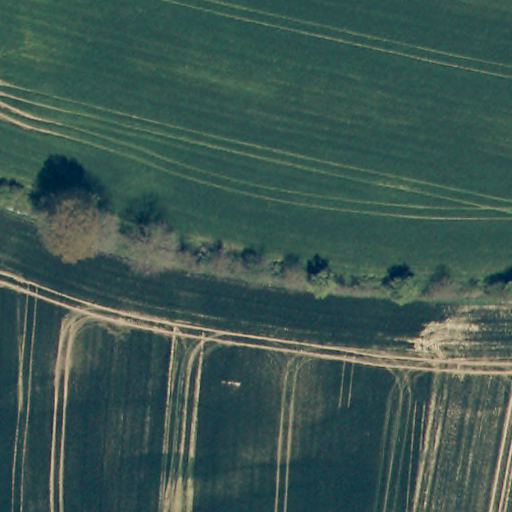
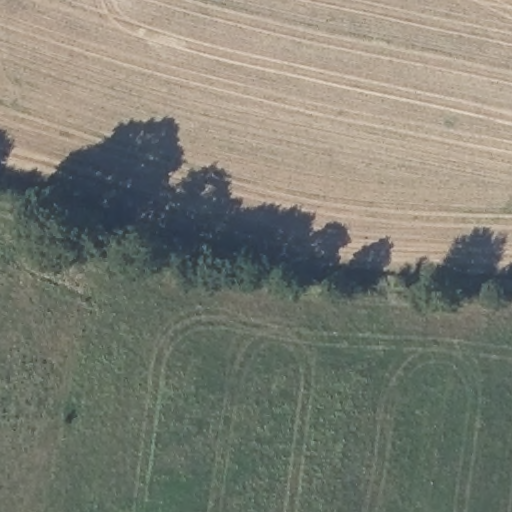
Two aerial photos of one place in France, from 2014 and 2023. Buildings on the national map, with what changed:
[]

